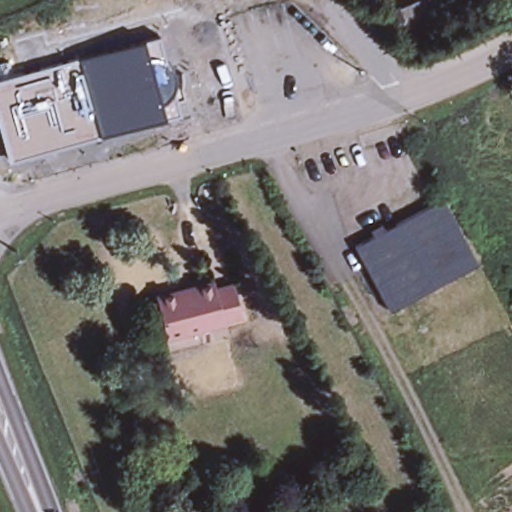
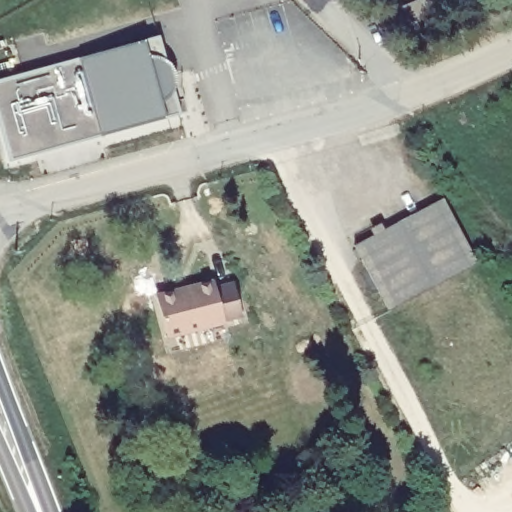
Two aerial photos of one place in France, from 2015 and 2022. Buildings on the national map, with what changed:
unchanged [(408,0),(426,0),(434,15),(388,43),(377,14),(408,0)]
unchanged [(167,120),(10,161),(0,124),(0,79),(144,39),(161,35),(182,116),(167,120)]
unchanged [(444,194),(479,259),(390,306),(355,241),(444,194)]
unchanged [(154,294),(212,279),(214,285),(232,282),(239,311),(222,315),(223,318),(164,334),(154,294)]

